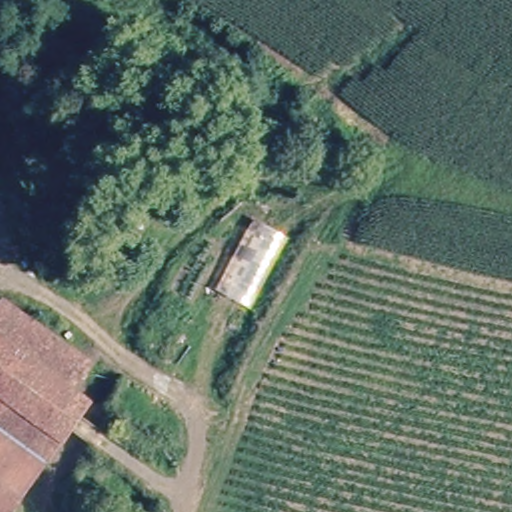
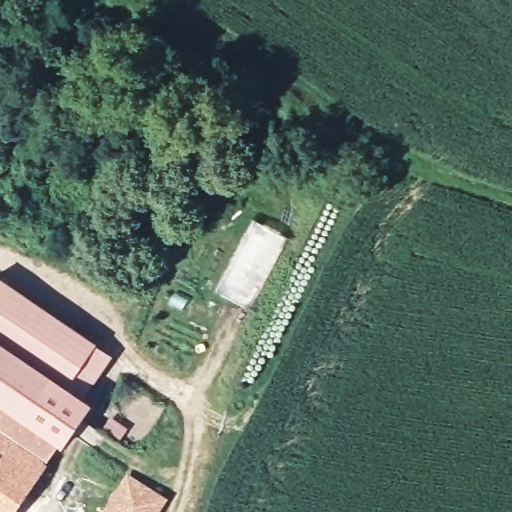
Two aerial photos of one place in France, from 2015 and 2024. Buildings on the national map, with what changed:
unchanged [(67,403),(81,413),(52,454),(0,418),(0,309),(89,371),(67,403)]
unchanged [(41,471),(0,442),(0,418),(52,454),(41,471)]
unchanged [(12,512),(0,512),(0,442),(41,471),(12,512)]
new [(167,499),(159,512),(101,512),(127,473),(167,499)]

